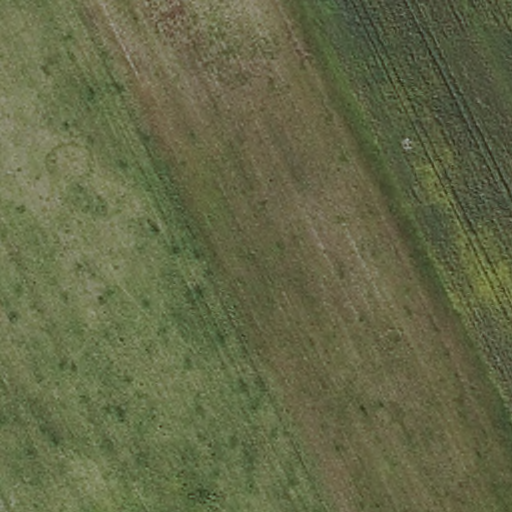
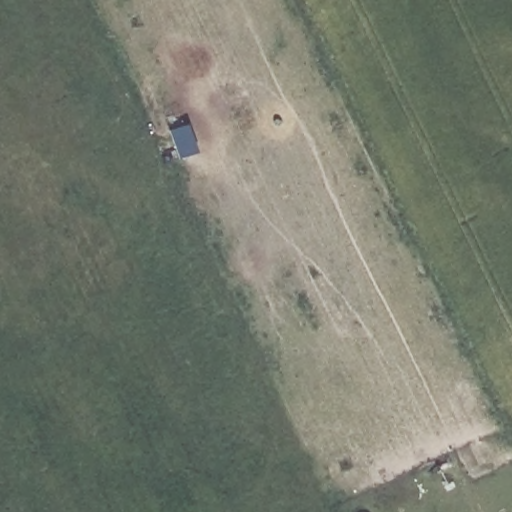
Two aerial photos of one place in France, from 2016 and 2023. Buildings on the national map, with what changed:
[]

